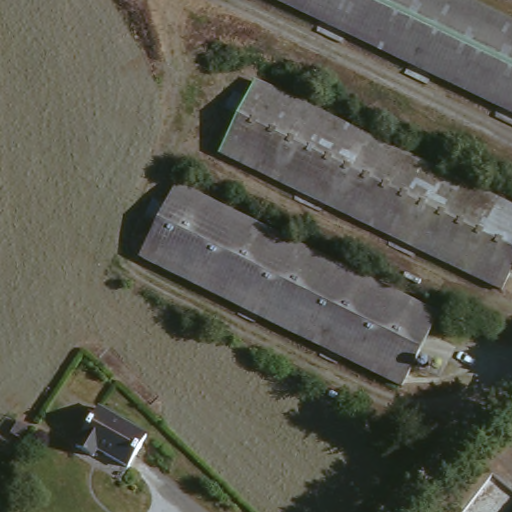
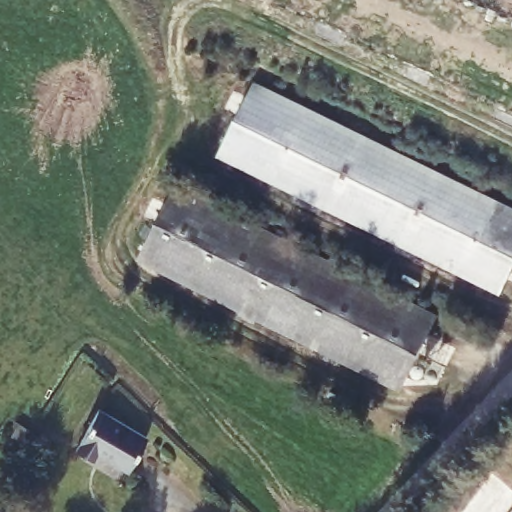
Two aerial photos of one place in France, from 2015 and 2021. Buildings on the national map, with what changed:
demolished [(269,0),(452,0),(512,29),(512,119),(269,0)]
unchanged [(213,162),(248,89),(512,217),(512,273),(499,300),(213,162)]
unchanged [(136,262),(171,190),(435,320),(399,392),(136,262)]
unchanged [(91,411),(141,436),(123,468),(93,452),(89,460),(71,451),(91,411)]

